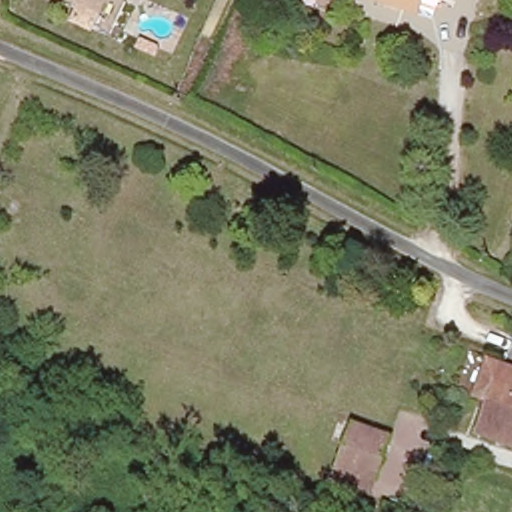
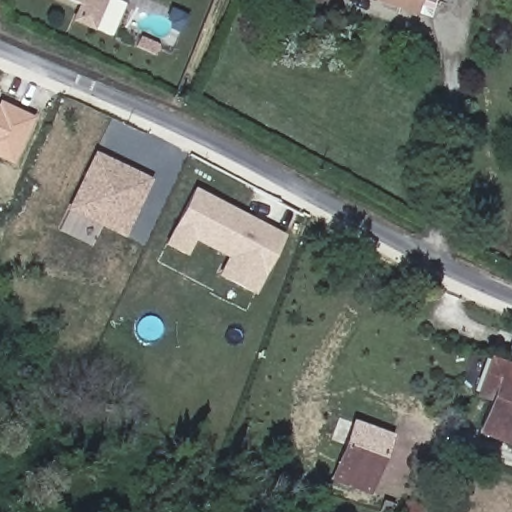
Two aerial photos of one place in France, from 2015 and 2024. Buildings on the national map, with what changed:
unchanged [(82,5),(69,0),(100,0),(95,11),(82,5)]
unchanged [(423,12),(384,0),(427,0),(423,12)]
new [(34,118),(13,164),(0,156),(0,104),(34,118)]
new [(65,210),(93,151),(152,179),(124,238),(65,210)]
new [(256,295),(217,275),(226,257),(194,240),(186,256),(163,245),(193,187),(286,235),(256,295)]
unchanged [(512,334),(512,371),(502,367),(512,334)]
unchanged [(490,403),(475,396),(486,362),(502,367),(512,371),(512,447),(480,435),(490,403)]
unchanged [(339,477),(344,461),(358,418),(361,419),(395,430),(381,474),(376,489),(339,477)]

